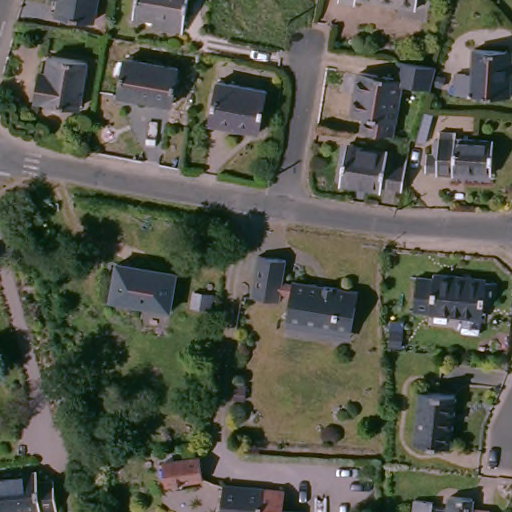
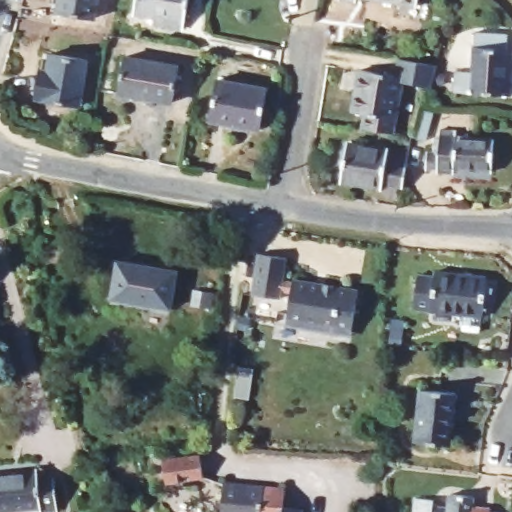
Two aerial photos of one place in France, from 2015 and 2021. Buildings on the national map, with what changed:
unchanged [(65,14),(68,0),(106,0),(103,21),(65,14)]
unchanged [(152,25),(153,19),(134,15),(136,0),(188,0),(183,31),(152,25)]
unchanged [(399,0),(421,0),(421,4),(399,0)]
unchanged [(464,93),(466,73),(483,75),(484,49),(512,51),(512,96),(464,93)]
unchanged [(91,62),(83,107),(40,99),(46,71),(51,71),(55,56),(91,62)]
unchanged [(179,68),(172,105),(118,95),(124,58),(179,68)]
unchanged [(401,66),(441,73),(436,91),(408,86),(398,141),(366,136),(369,121),(356,119),(364,76),(398,82),(401,66)]
unchanged [(266,90),(259,131),(211,123),(218,81),(266,90)]
unchanged [(449,119),(440,148),(431,145),(439,116),(449,119)]
unchanged [(508,145),(506,179),(469,176),(468,180),(451,179),(451,176),(439,175),(441,158),(448,159),(449,144),(453,145),(454,136),(471,137),(470,143),(508,145)]
unchanged [(413,156),(407,188),(387,185),(386,190),(345,183),(351,145),(413,156)]
unchanged [(298,295),(288,294),(287,302),(258,298),(264,256),(293,261),(289,284),(299,285),(300,282),(366,291),(359,331),(336,327),(335,334),(310,330),(311,324),(294,321),(298,295)]
unchanged [(178,274),(171,310),(111,300),(118,263),(178,274)]
unchanged [(491,280),(491,282),(501,283),(499,303),(489,302),(486,319),(419,312),(422,277),(439,279),(440,275),(491,280)]
unchanged [(456,399),(451,452),(416,449),(421,395),(456,399)]
unchanged [(206,478),(169,485),(164,463),(203,456),(206,478)]
unchanged [(0,474),(32,471),(33,481),(49,479),(52,511),(41,512),(37,512),(36,510),(37,512),(0,512),(0,474)]
unchanged [(232,480),(291,486),(289,509),(289,512),(227,512),(232,480)]
unchanged [(450,496),(473,499),(472,509),(490,511),(490,512),(414,512),(415,501),(433,502),(433,509),(449,510),(450,496)]
unchanged [(289,509),(306,510),(305,512),(289,512),(289,509)]

